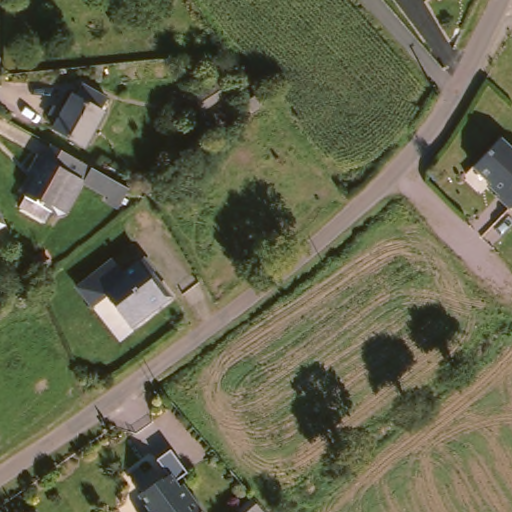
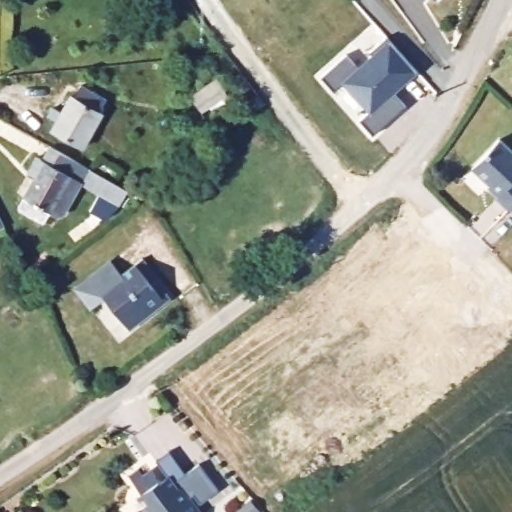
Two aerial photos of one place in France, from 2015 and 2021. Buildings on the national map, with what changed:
new [(356,67),(371,54),(367,50),(384,36),(414,70),(397,84),(390,90),(403,105),(369,134),(356,118),(366,109),(342,80),(331,90),(318,75),(343,53),(356,67)]
unchanged [(182,96),(209,78),(221,94),(194,112),(182,96)]
unchanged [(51,126),(55,119),(46,113),(52,104),(60,109),(71,91),(72,93),(79,81),(104,96),(97,108),(101,109),(81,144),(51,126)]
unchanged [(241,103),(256,92),(262,100),(247,111),(241,103)]
unchanged [(489,200),(490,198),(481,189),(482,187),(465,169),(492,141),(507,156),(511,152),(512,153),(512,178),(512,219),(503,210),(501,212),(489,200)]
unchanged [(129,189),(118,208),(106,201),(109,197),(83,182),(70,205),(69,207),(66,209),(62,211),(58,211),(52,208),(46,218),(18,203),(36,171),(29,167),(37,154),(40,156),(48,144),(91,167),(117,182),(129,189)]
unchanged [(146,276),(139,281),(146,290),(150,288),(161,303),(121,333),(97,300),(83,311),(68,291),(104,264),(115,278),(136,262),(146,276)]
unchanged [(170,478),(178,472),(162,453),(176,442),(193,464),(184,473),(188,478),(191,475),(220,512),(149,512),(145,508),(156,500),(146,488),(149,486),(141,476),(136,469),(146,462),(151,468),(158,462),(170,478)]
unchanged [(242,504),(249,512),(234,512),(242,504)]

